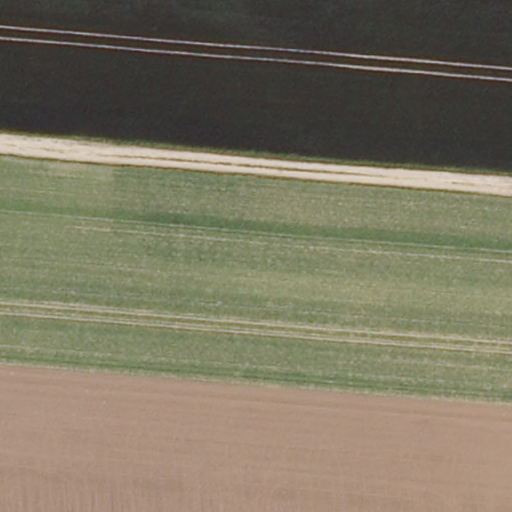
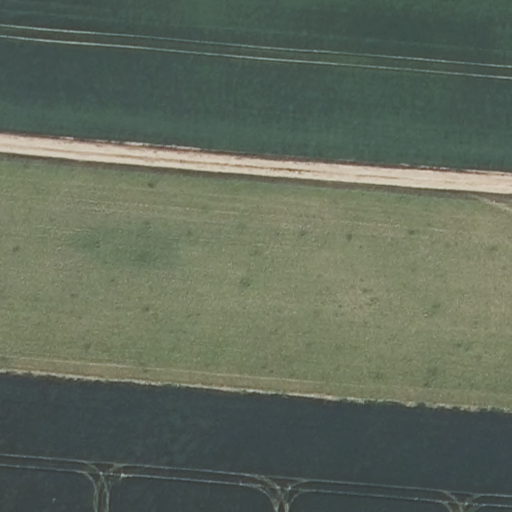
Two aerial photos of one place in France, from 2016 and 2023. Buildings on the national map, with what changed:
[]

